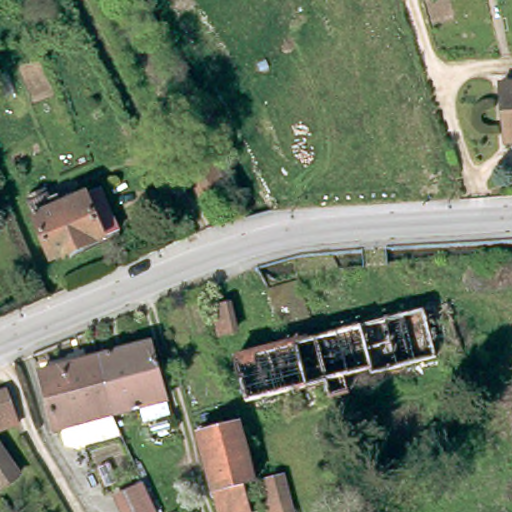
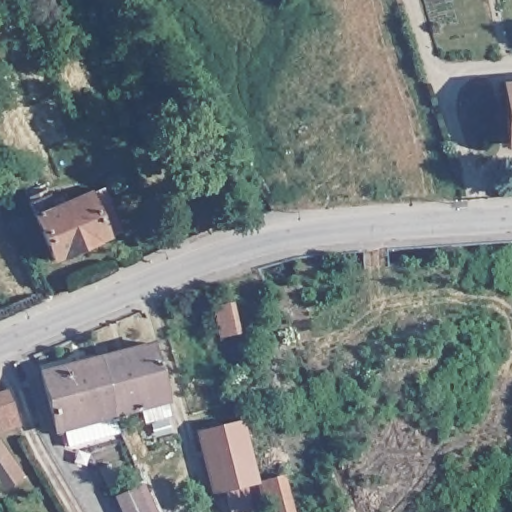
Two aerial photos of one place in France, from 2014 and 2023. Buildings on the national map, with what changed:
unchanged [(512,143),(505,143),(502,88),(512,88),(512,143)]
unchanged [(203,144),(220,174),(197,186),(182,156),(203,144)]
unchanged [(28,204),(30,204),(28,199),(46,191),(48,196),(51,202),(59,199),(62,207),(87,196),(102,190),(120,232),(103,239),(51,261),(28,204)]
demolished [(320,401),(313,382),(243,400),(232,359),(425,305),(440,353),(373,376),(368,365),(338,375),(343,393),(340,394),(328,398),(320,401)]
unchanged [(233,316),(240,346),(225,349),(217,321),(233,316)]
unchanged [(138,418),(133,402),(107,409),(90,354),(144,342),(157,395),(162,411),(138,418)]
unchanged [(57,422),(52,423),(35,369),(90,354),(107,409),(112,427),(63,440),(57,422)]
unchanged [(0,429),(0,391),(3,390),(12,426),(0,429)]
unchanged [(224,512),(213,482),(195,431),(233,418),(248,471),(235,475),(248,510),(241,512),(224,512)]
unchanged [(19,476),(4,485),(0,479),(0,445),(19,476)]
unchanged [(275,468),(290,512),(261,512),(250,476),(275,468)]
unchanged [(140,486),(152,512),(121,512),(114,496),(140,486)]

